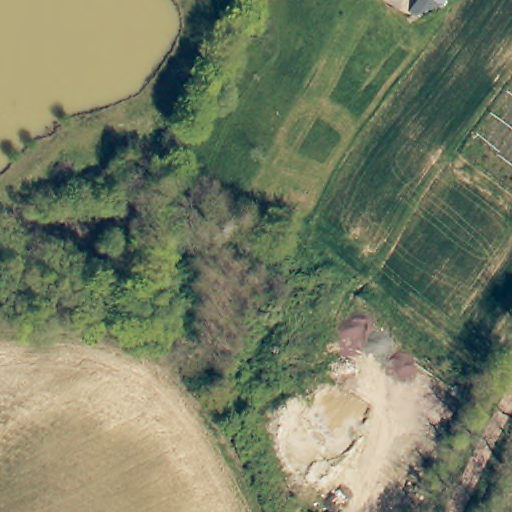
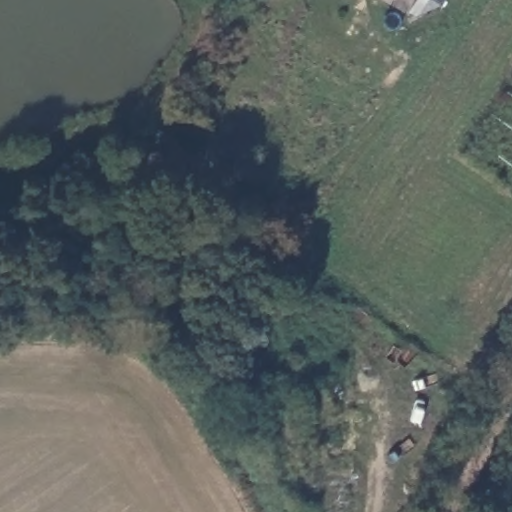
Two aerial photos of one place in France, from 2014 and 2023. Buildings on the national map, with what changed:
unchanged [(440,4),(415,15),(406,10),(412,0),(442,0),(440,4)]

